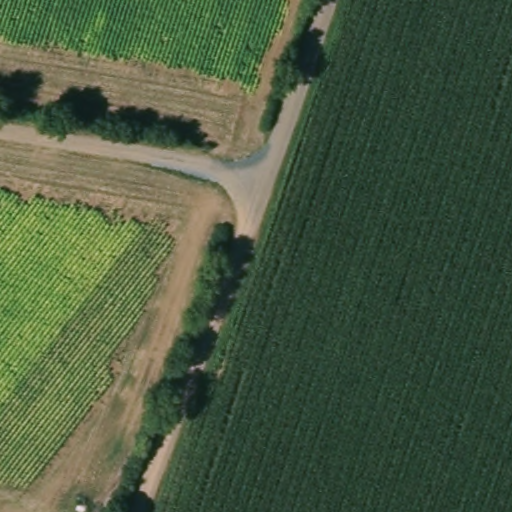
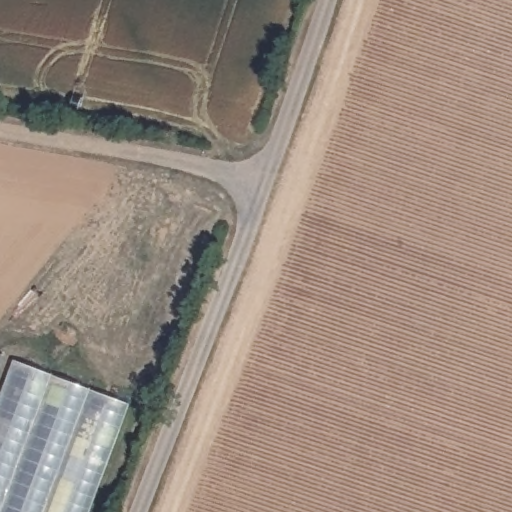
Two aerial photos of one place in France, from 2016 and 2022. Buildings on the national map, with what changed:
new [(89,512),(0,512),(0,395),(13,360),(129,403),(89,512)]

